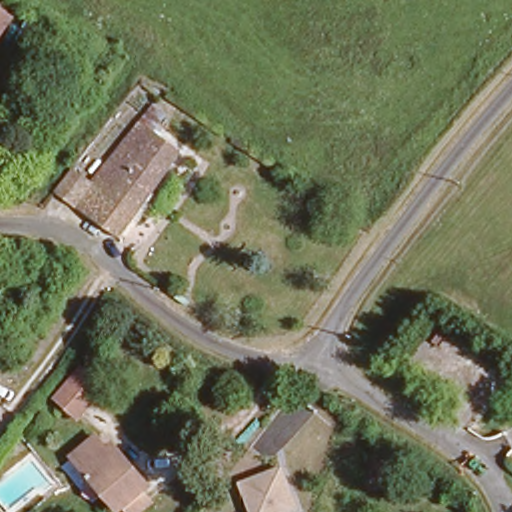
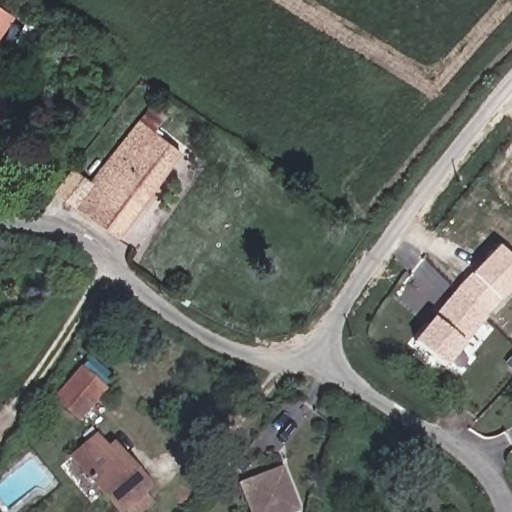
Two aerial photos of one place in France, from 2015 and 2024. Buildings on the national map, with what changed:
unchanged [(0,7),(0,0),(3,0),(0,7)]
unchanged [(61,163),(84,179),(129,113),(176,147),(116,230),(70,199),(47,183),(61,163)]
new [(512,260),(512,288),(500,300),(485,316),(456,289),(470,274),(497,246),(512,260)]
unchanged [(65,277),(47,271),(56,247),(75,254),(65,277)]
new [(413,341),(456,289),(486,317),(444,367),(413,341)]
unchanged [(51,389),(84,354),(107,371),(73,408),(51,389)]
unchanged [(131,505),(122,496),(115,502),(66,444),(92,423),(105,438),(112,431),(132,455),(148,474),(141,480),(150,490),(131,505)]
unchanged [(285,465),(300,510),(296,512),(250,512),(241,482),(285,465)]

